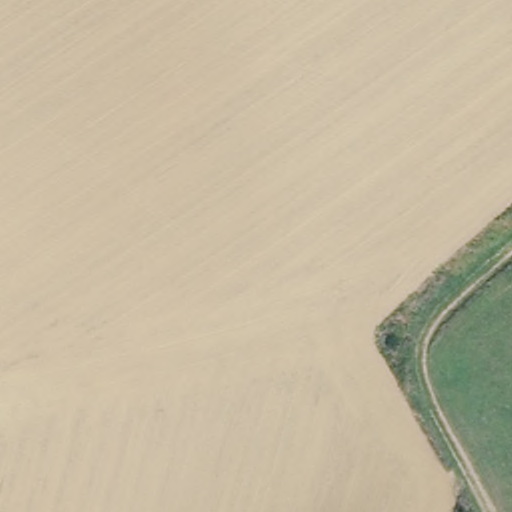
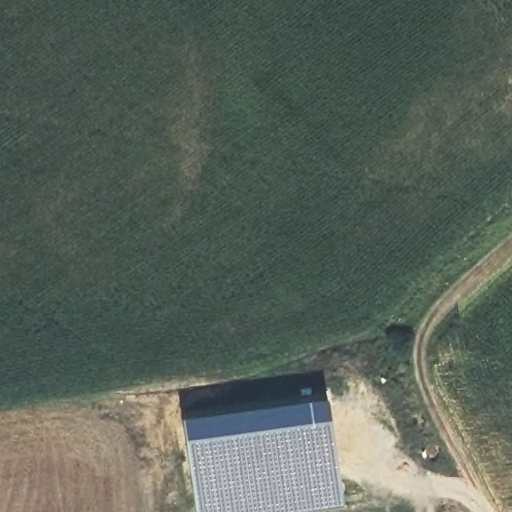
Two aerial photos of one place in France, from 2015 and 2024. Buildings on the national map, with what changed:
new [(266,512),(198,512),(185,429),(183,410),(326,388),(330,407),(343,501),(266,512)]

